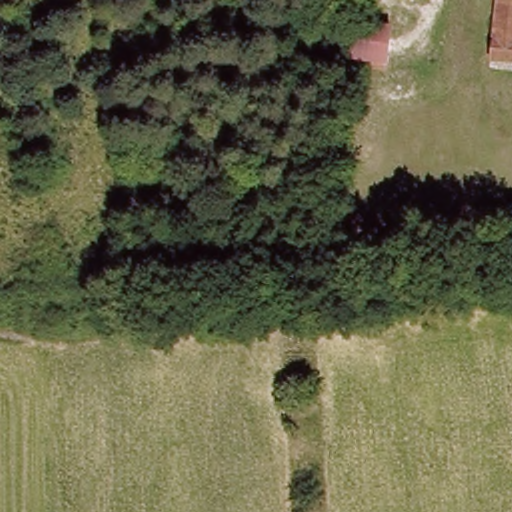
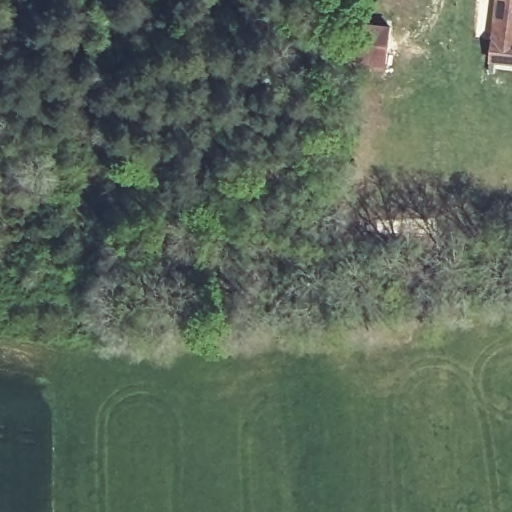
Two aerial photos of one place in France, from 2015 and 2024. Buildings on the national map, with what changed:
unchanged [(495,65),(500,0),(512,0),(512,65),(495,65)]
unchanged [(371,69),(372,61),(350,59),(350,25),(390,28),(387,62),(387,70),(371,69)]

